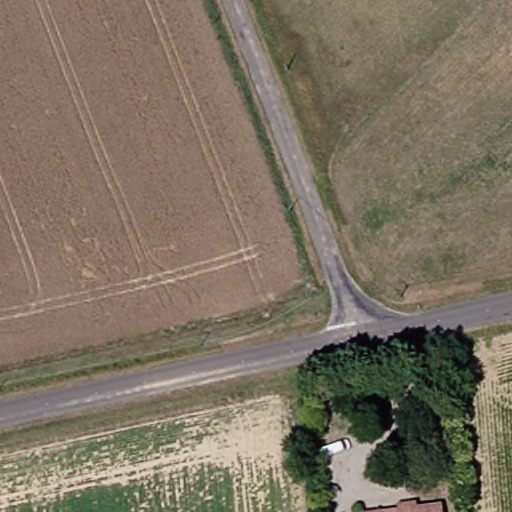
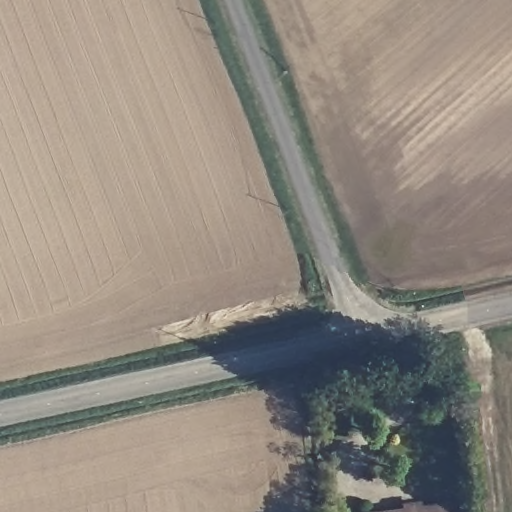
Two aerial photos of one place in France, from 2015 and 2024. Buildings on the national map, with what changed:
unchanged [(446,512),(399,512),(445,508),(446,512)]

